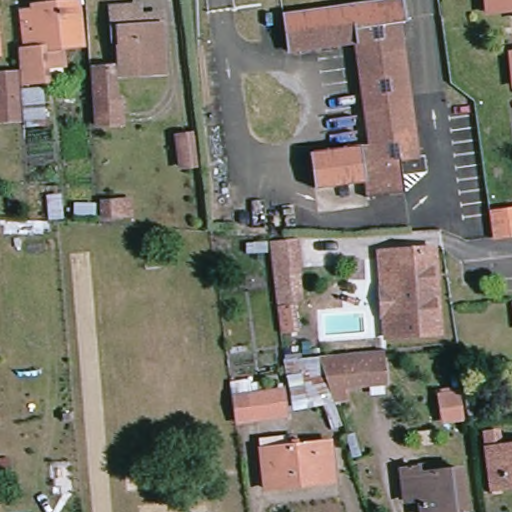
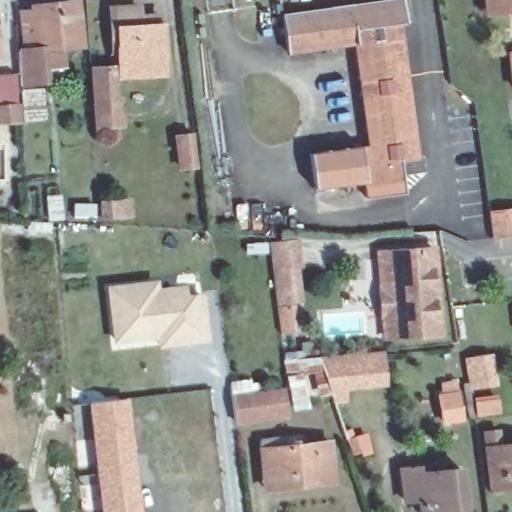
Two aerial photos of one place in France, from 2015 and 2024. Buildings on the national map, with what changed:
unchanged [(399,0),(402,26),(394,27),(413,161),(400,163),(402,193),(357,200),(351,149),(364,147),(349,44),(338,45),(333,7),(399,0)]
unchanged [(498,7),(483,9),(482,0),(512,0),(512,5),(498,7)]
unchanged [(16,22),(16,15),(26,13),(25,7),(66,2),(71,42),(30,49),(34,98),(11,99),(9,58),(9,50),(21,49),(16,22)]
unchanged [(161,75),(115,77),(114,51),(116,51),(115,18),(115,6),(136,5),(136,17),(159,16),(161,75)]
unchanged [(338,45),(284,51),(281,12),(333,7),(338,45)]
unchanged [(506,83),(505,74),(501,51),(512,50),(512,83),(506,83)]
unchanged [(107,64),(113,126),(92,127),(87,66),(107,64)]
unchanged [(9,120),(0,121),(0,74),(6,74),(9,120)]
unchanged [(197,166),(178,169),(174,139),(194,137),(197,166)]
unchanged [(343,202),(341,186),(307,190),(304,155),(351,149),(357,200),(343,202)]
unchanged [(101,224),(100,200),(135,197),(135,221),(101,224)]
unchanged [(496,212),(512,210),(512,238),(498,239),(496,212)]
unchanged [(295,238),(298,269),(294,270),(297,304),(291,307),(292,333),(275,335),(265,240),(295,238)]
unchanged [(419,244),(435,327),(384,336),(369,253),(419,244)]
new [(156,348),(156,338),(111,344),(105,285),(157,279),(158,287),(185,283),(186,294),(203,291),(209,341),(156,348)]
unchanged [(506,330),(504,303),(512,303),(512,330),(506,330)]
unchanged [(341,389),(340,406),(286,409),(279,358),(377,352),(380,386),(341,389)]
unchanged [(275,387),(280,412),(230,419),(226,394),(275,387)]
unchanged [(442,428),(438,394),(464,390),(467,424),(442,428)]
new [(128,397),(141,512),(100,512),(87,403),(128,397)]
unchanged [(496,431),(498,446),(512,444),(512,485),(486,488),(478,432),(496,431)]
unchanged [(263,485),(262,474),(254,475),(252,448),(317,439),(322,472),(323,479),(266,485),(263,485)]
unchanged [(455,511),(449,512),(411,512),(411,500),(393,501),(390,467),(407,466),(408,473),(450,469),(455,511)]
demolished [(61,483),(79,481),(79,488),(82,512),(65,512),(62,490),(61,483)]

